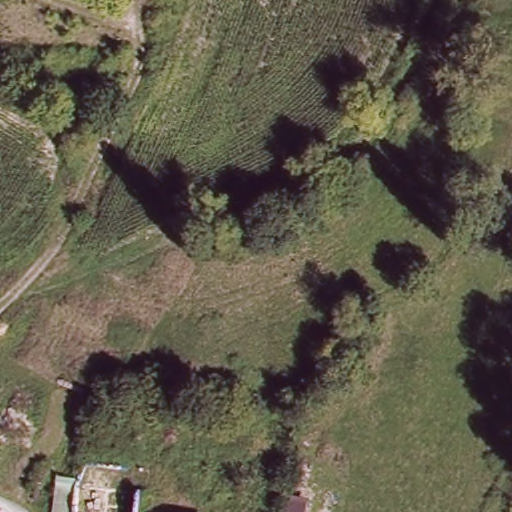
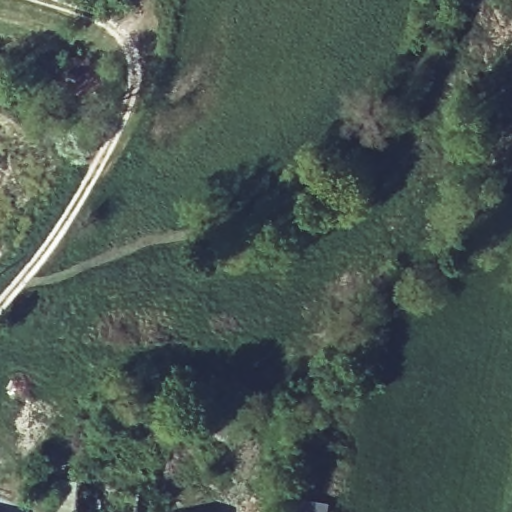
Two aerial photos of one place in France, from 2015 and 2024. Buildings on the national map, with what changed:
unchanged [(139,512),(75,512),(78,491),(84,470),(141,475),(139,512)]

